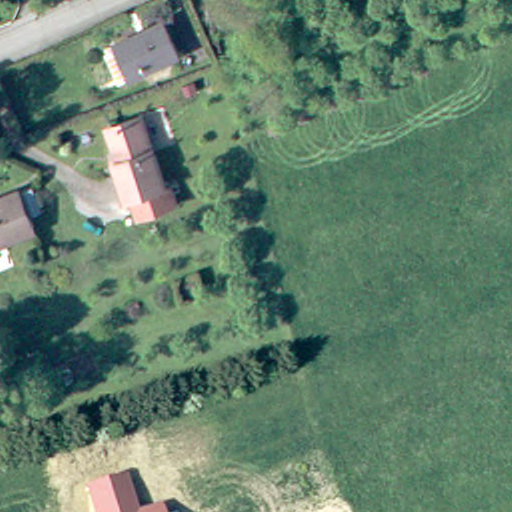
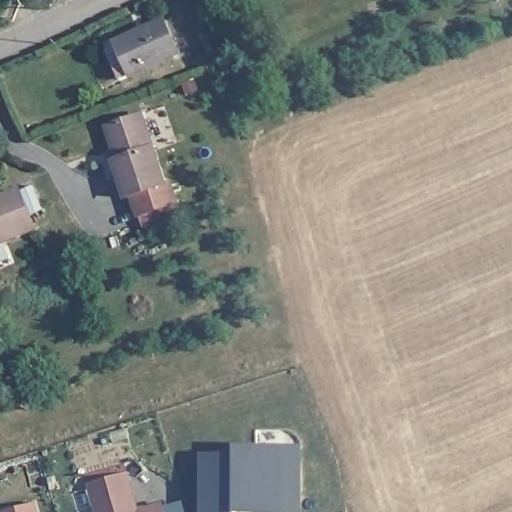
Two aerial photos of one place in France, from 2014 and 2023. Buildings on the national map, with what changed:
unchanged [(109,46),(121,40),(120,37),(166,16),(180,47),(134,69),(123,75),(109,46)]
unchanged [(118,145),(109,122),(142,110),(168,177),(131,191),(118,156),(114,146),(118,145)]
unchanged [(40,206),(29,211),(18,190),(29,185),(40,206)]
unchanged [(31,225),(0,241),(0,197),(13,190),(31,225)]
new [(234,453),(234,445),(301,443),(301,512),(201,512),(199,453),(234,453)]
unchanged [(87,485),(128,473),(138,510),(161,504),(163,512),(94,512),(87,485)]
new [(35,502),(38,512),(0,512),(35,502)]

